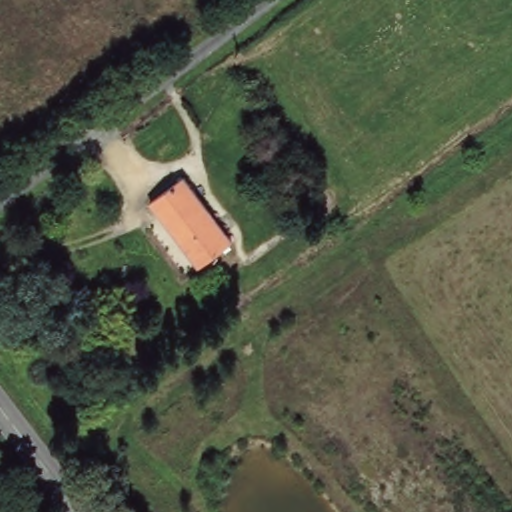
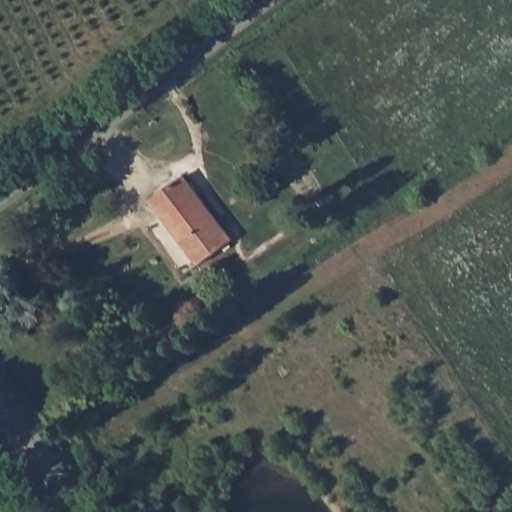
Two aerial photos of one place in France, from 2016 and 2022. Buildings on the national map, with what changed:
unchanged [(182,175),(234,238),(206,262),(154,200),(182,175)]

